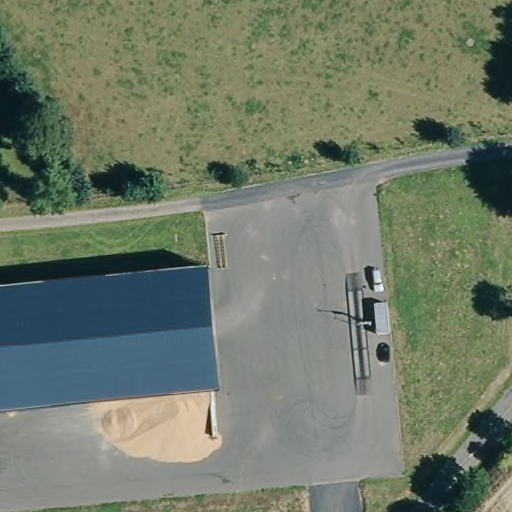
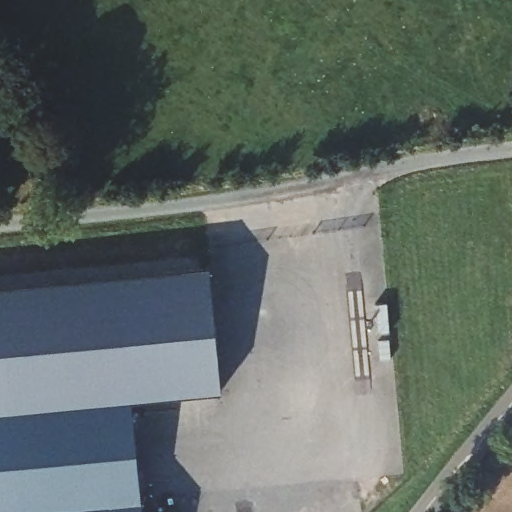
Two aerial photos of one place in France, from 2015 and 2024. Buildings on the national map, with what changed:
unchanged [(221,392),(0,413),(0,287),(208,267),(221,392)]
new [(0,512),(0,413),(131,401),(142,512),(0,512)]

